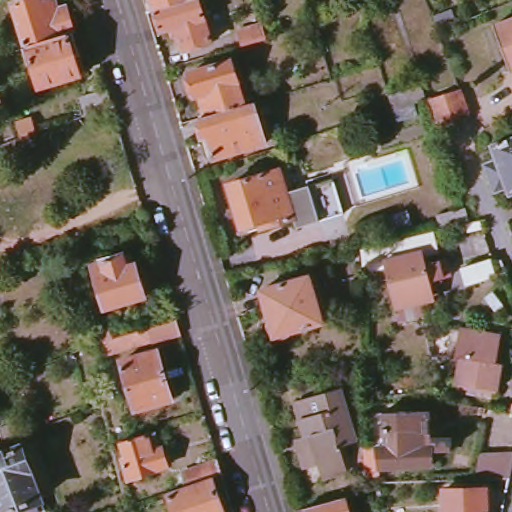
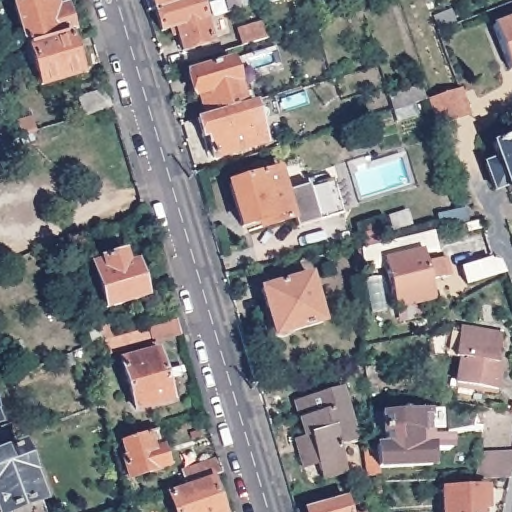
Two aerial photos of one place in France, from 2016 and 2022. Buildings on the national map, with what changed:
unchanged [(150,15),(145,0),(185,0),(186,4),(164,11),(150,15)]
unchanged [(35,1),(37,8),(50,4),(53,14),(61,11),(68,36),(37,46),(24,50),(9,8),(35,1)]
unchanged [(179,56),(172,34),(157,39),(150,15),(164,11),(186,4),(195,1),(208,48),(179,56)]
unchanged [(495,26),(512,19),(512,70),(495,26)]
unchanged [(265,24),(269,39),(243,46),(238,31),(265,24)]
unchanged [(75,60),(70,61),(76,79),(35,91),(24,50),(37,46),(68,36),(75,60)]
unchanged [(202,96),(195,75),(237,62),(244,84),(239,85),(245,107),(224,113),(219,115),(217,115),(216,116),(210,94),(202,96)]
unchanged [(109,89),(114,106),(82,116),(77,99),(109,89)]
unchanged [(435,125),(426,98),(457,89),(467,114),(435,125)]
unchanged [(245,107),(249,106),(261,146),(221,159),(215,139),(210,140),(204,119),(216,116),(217,115),(219,115),(224,113),(245,107)]
unchanged [(495,145),(512,139),(512,194),(508,186),(496,190),(487,164),(488,164),(500,160),(495,145)]
unchanged [(270,170),(277,194),(324,180),(335,215),(288,229),(285,220),(261,227),(260,220),(233,228),(220,184),(270,170)]
unchanged [(462,208),(465,222),(438,228),(435,214),(462,208)]
unchanged [(417,304),(420,315),(395,320),(392,304),(383,266),(362,270),(357,247),(430,230),(434,251),(422,253),(424,262),(434,260),(437,278),(427,280),(430,295),(432,301),(417,304)]
unchanged [(137,266),(144,264),(153,297),(117,308),(103,265),(114,262),(113,259),(134,253),(137,266)]
unchanged [(491,262),(495,279),(467,286),(462,269),(491,262)]
unchanged [(324,323),(277,337),(263,291),(311,277),(324,323)]
unchanged [(496,365),(501,366),(497,389),(458,383),(462,359),(457,359),(451,358),(455,331),(461,332),(461,330),(500,336),(496,365)]
unchanged [(162,361),(117,374),(114,360),(110,348),(118,345),(122,357),(187,340),(192,353),(163,363),(162,361)]
unchanged [(182,420),(147,430),(133,382),(170,371),(182,420)]
unchanged [(360,436),(342,441),(350,468),(326,475),(320,458),(306,462),(298,435),(307,433),(296,398),(344,384),(360,436)]
unchanged [(28,425),(0,436),(0,420),(22,411),(28,425)]
unchanged [(382,450),(382,448),(390,448),(389,413),(435,412),(436,437),(456,436),(456,450),(437,451),(438,465),(385,468),(385,476),(374,477),(370,452),(382,450)]
unchanged [(163,446),(169,466),(157,469),(157,471),(130,479),(124,458),(129,456),(124,441),(156,431),(160,448),(163,446)]
unchanged [(8,512),(1,512),(0,510),(0,455),(22,447),(42,500),(8,512)]
unchanged [(477,479),(482,452),(512,453),(512,478),(477,479)]
unchanged [(170,497),(188,490),(184,476),(219,463),(224,478),(212,482),(221,512),(175,512),(170,497)]
unchanged [(483,505),(479,505),(479,512),(441,512),(440,486),(483,485),(483,505)]
unchanged [(307,504),(347,492),(352,512),(309,512),(307,504)]

